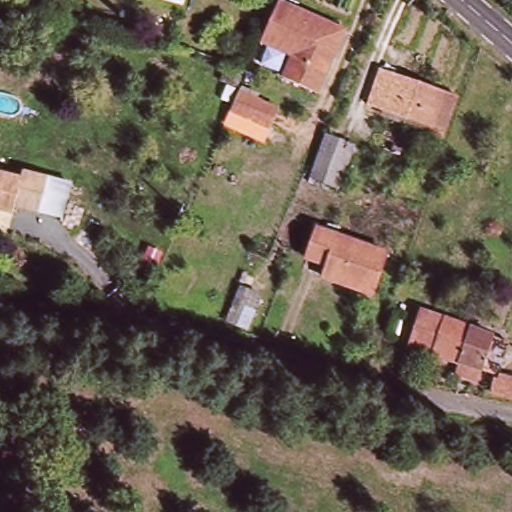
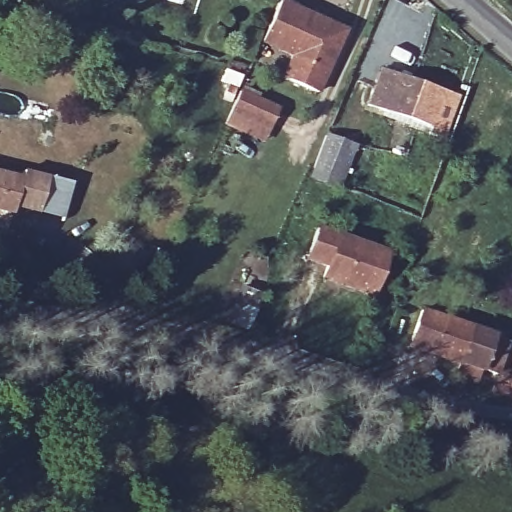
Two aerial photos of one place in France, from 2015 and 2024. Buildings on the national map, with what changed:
unchanged [(345,33),(320,95),(285,81),(292,62),(266,47),(285,4),(345,33)]
unchanged [(440,138),(427,135),(430,128),(366,107),(381,67),(456,95),(440,138)]
unchanged [(240,95),(278,112),(274,125),(272,131),(231,116),(233,109),(240,95)]
unchanged [(355,159),(342,188),(313,174),(327,146),(355,159)]
unchanged [(0,214),(0,173),(27,181),(30,172),(56,181),(47,212),(20,204),(17,218),(0,214)]
unchanged [(322,279),(327,264),(306,257),(317,228),(388,254),(372,294),(322,279)]
unchanged [(408,344),(420,311),(446,321),(436,354),(408,344)]
unchanged [(468,329),(512,346),(512,348),(501,377),(436,354),(446,321),(468,329)]
unchanged [(512,389),(512,397),(502,393),(512,389)]

